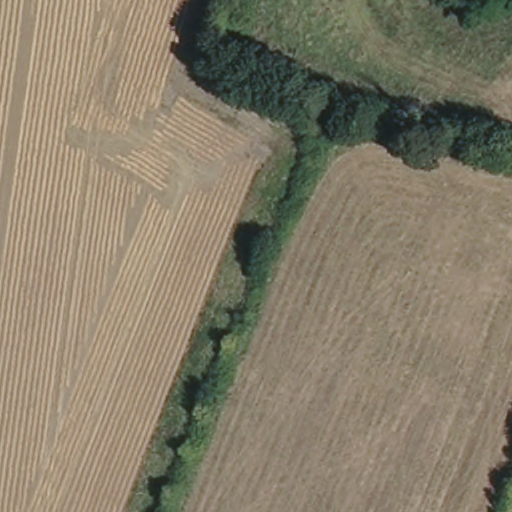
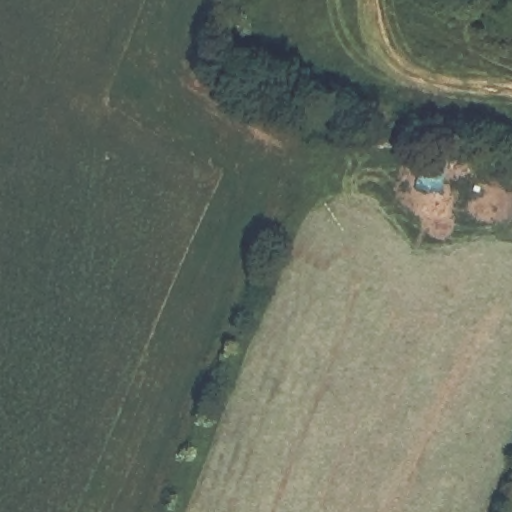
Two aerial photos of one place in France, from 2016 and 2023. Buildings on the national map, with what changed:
[]

